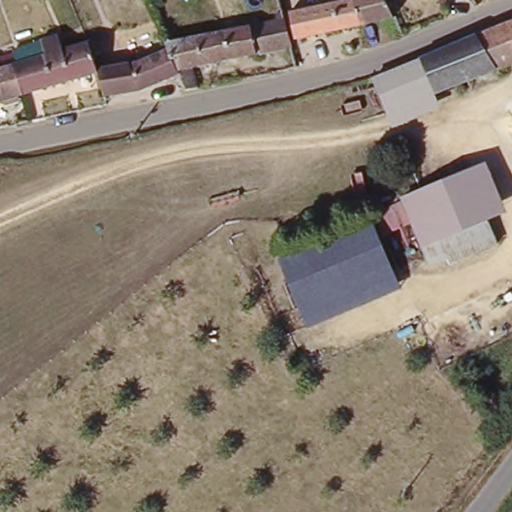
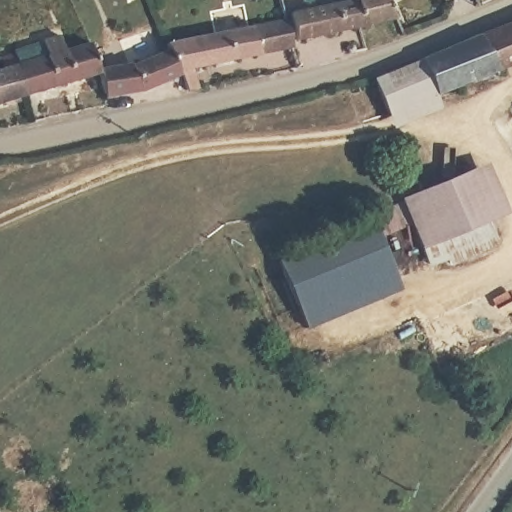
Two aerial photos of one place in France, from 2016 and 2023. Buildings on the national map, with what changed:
unchanged [(189,70),(196,93),(185,96),(178,76),(168,48),(166,44),(266,11),(265,3),(274,0),(276,6),(283,41),(189,70)]
unchanged [(281,5),(303,0),(352,0),(356,18),(287,33),(281,5)]
unchanged [(352,0),(387,0),(390,10),(356,18),(352,0)]
unchanged [(476,0),(478,0),(476,1),(476,0)]
unchanged [(504,67),(440,88),(426,53),(496,31),(512,24),(512,65),(504,67)]
unchanged [(12,70),(9,61),(8,58),(37,47),(35,41),(35,39),(52,32),(58,50),(79,42),(82,50),(92,78),(20,103),(0,110),(0,74),(2,74),(12,70)]
unchanged [(101,105),(92,78),(82,50),(96,45),(106,71),(168,48),(178,76),(101,105)]
unchanged [(445,100),(401,114),(388,118),(368,70),(426,53),(440,88),(445,100)]
unchanged [(489,163),(508,214),(493,221),(502,245),(451,267),(447,259),(427,265),(401,199),(489,163)]
unchanged [(281,260),(371,219),(391,268),(301,308),(281,260)]
unchanged [(398,286),(308,325),(301,308),(391,268),(398,286)]

